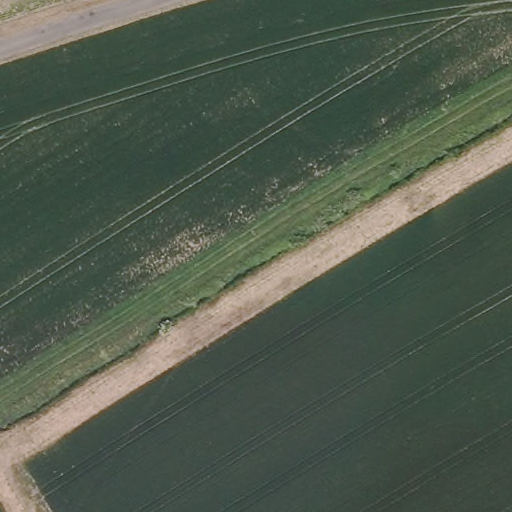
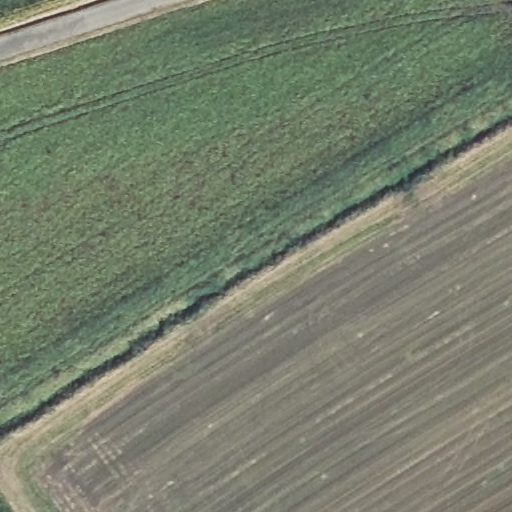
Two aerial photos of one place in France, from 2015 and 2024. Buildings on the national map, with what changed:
[]

